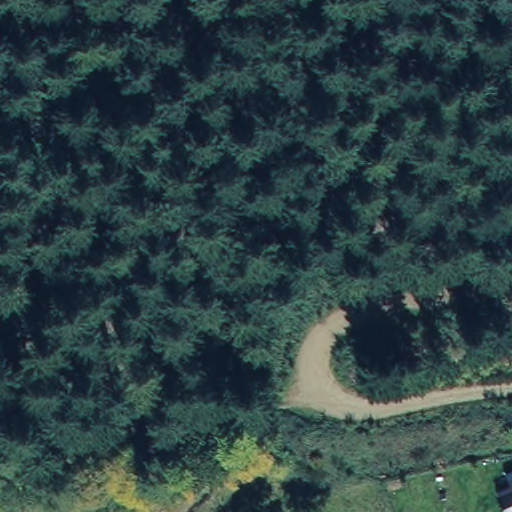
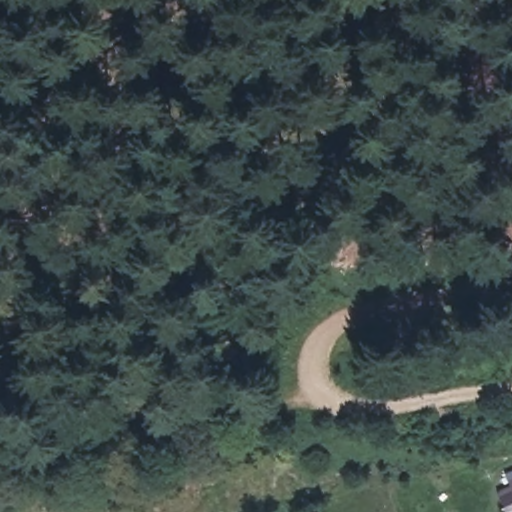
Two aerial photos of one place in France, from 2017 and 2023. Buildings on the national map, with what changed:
unchanged [(512,512),(504,512),(492,484),(512,477),(512,512)]

